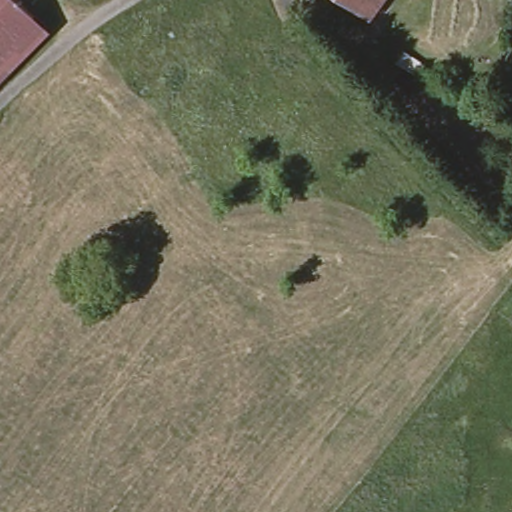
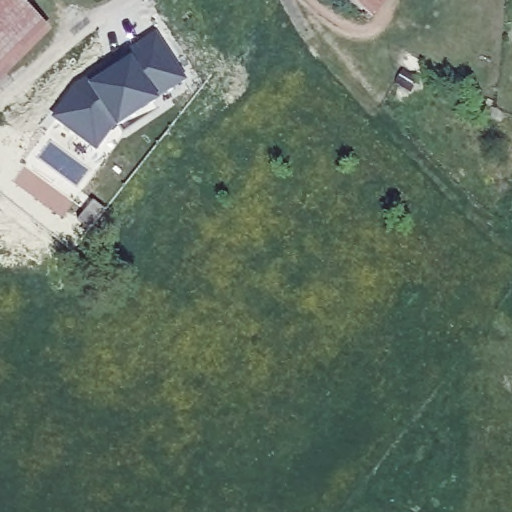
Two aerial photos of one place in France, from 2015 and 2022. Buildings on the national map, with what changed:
unchanged [(0,60),(0,0),(11,0),(35,24),(0,60)]
unchanged [(333,0),(368,0),(355,17),(333,0)]
new [(187,80),(157,97),(158,101),(116,129),(115,127),(96,151),(51,118),(74,86),(156,32),(187,80)]
unchanged [(406,50),(427,64),(420,77),(398,64),(406,50)]
unchanged [(420,80),(412,95),(395,85),(405,70),(420,80)]

